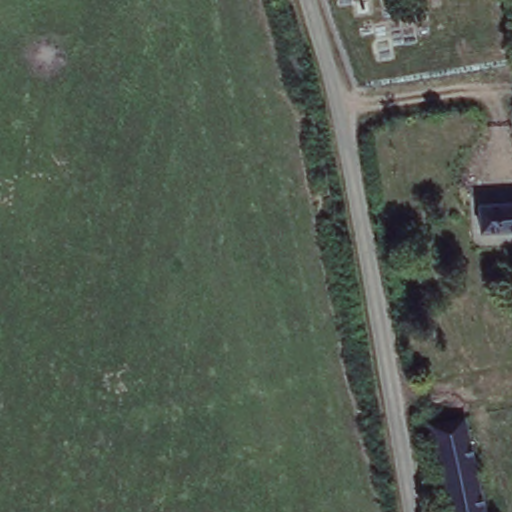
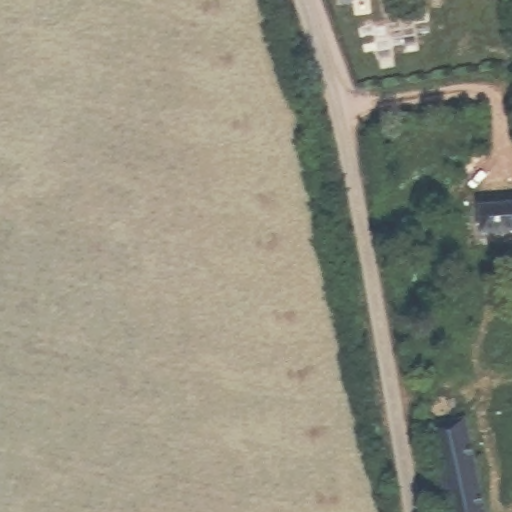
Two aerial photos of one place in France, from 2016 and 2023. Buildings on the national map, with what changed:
unchanged [(512,235),(478,236),(476,208),(512,206),(512,235)]
unchanged [(487,512),(451,512),(435,430),(432,416),(454,411),(457,425),(471,422),(487,512)]

